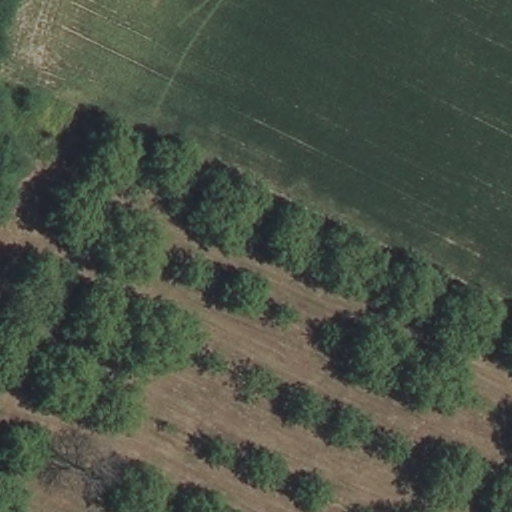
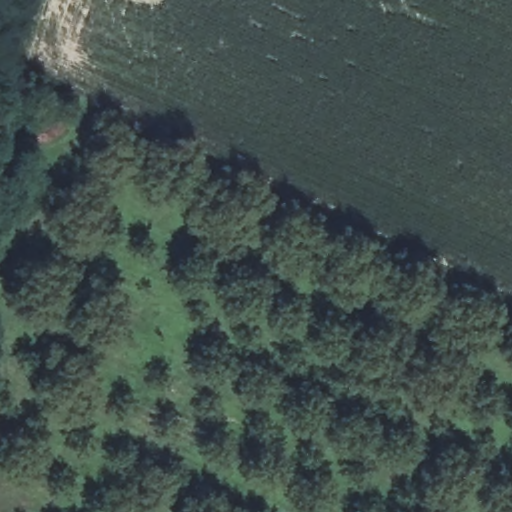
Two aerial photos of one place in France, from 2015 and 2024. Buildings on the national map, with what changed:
unchanged [(74,121),(63,151),(38,143),(48,114),(74,121)]

